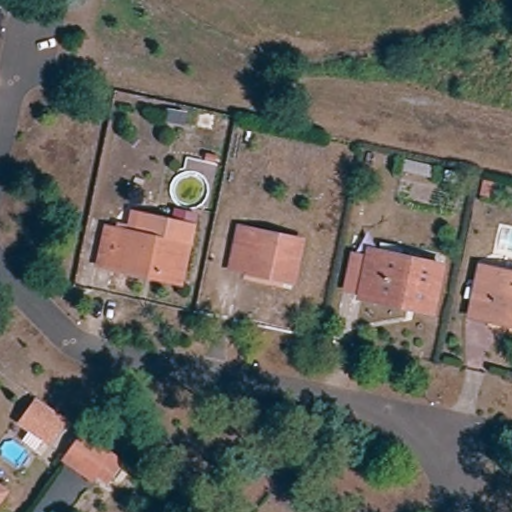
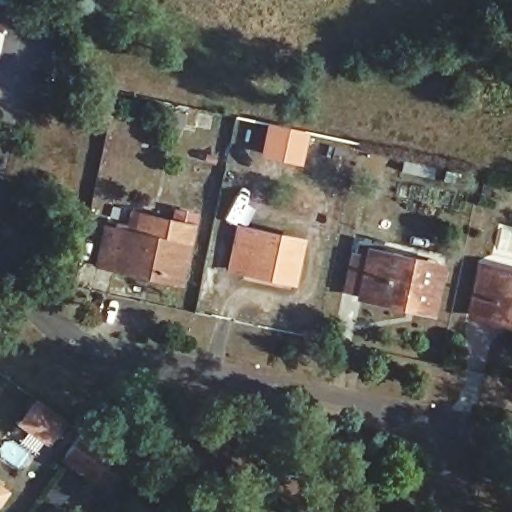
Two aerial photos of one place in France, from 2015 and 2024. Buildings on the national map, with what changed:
new [(268,124),(307,133),(300,166),(260,157),(268,124)]
unchanged [(142,281),(96,270),(104,230),(131,236),(135,219),(189,231),(185,248),(178,281),(176,288),(142,281)]
unchanged [(233,252),(237,233),(297,245),(290,286),(243,276),(229,273),(233,252)]
unchanged [(449,268),(440,312),(369,298),(352,294),(359,260),(376,264),(379,252),(449,268)]
unchanged [(512,322),(510,322),(509,329),(470,321),(481,274),(512,281),(512,322)]
unchanged [(42,450),(17,432),(32,412),(56,429),(42,450)]
unchanged [(94,483),(90,488),(60,468),(79,441),(109,462),(120,470),(105,490),(94,483)]
unchanged [(4,501),(0,507),(0,497),(4,501)]

